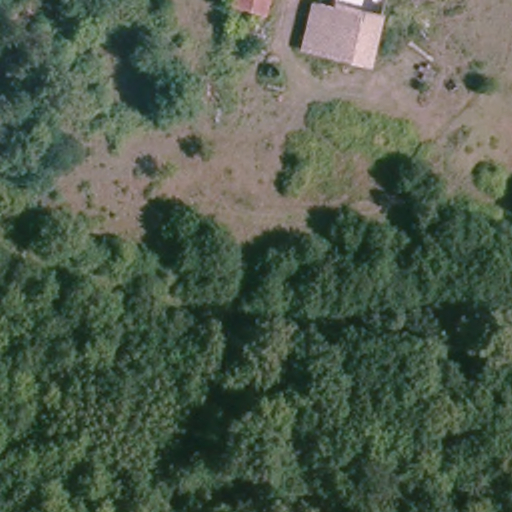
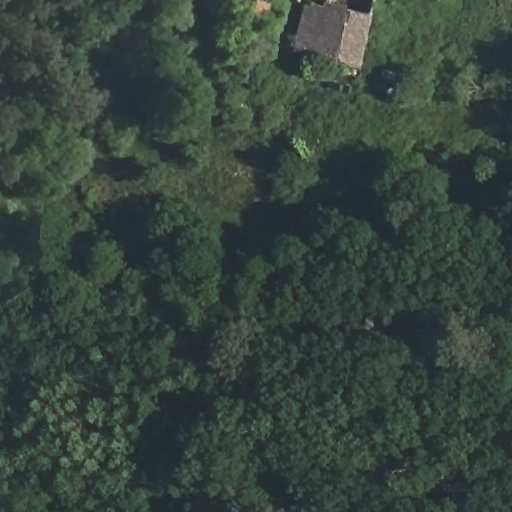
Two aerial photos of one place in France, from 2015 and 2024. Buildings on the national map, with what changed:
unchanged [(262,17),(225,8),(226,0),(265,0),(262,17)]
unchanged [(367,67),(296,53),(308,2),(378,14),(367,67)]

